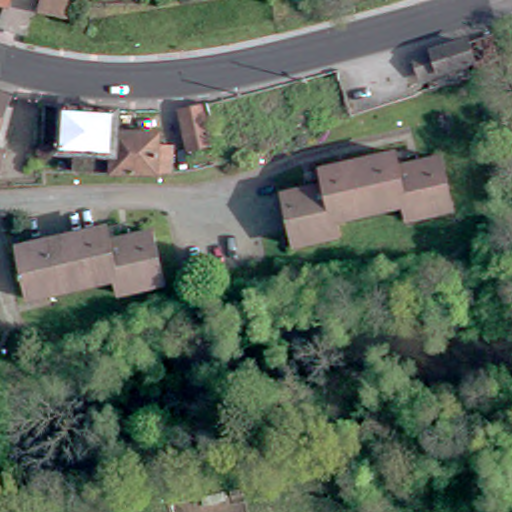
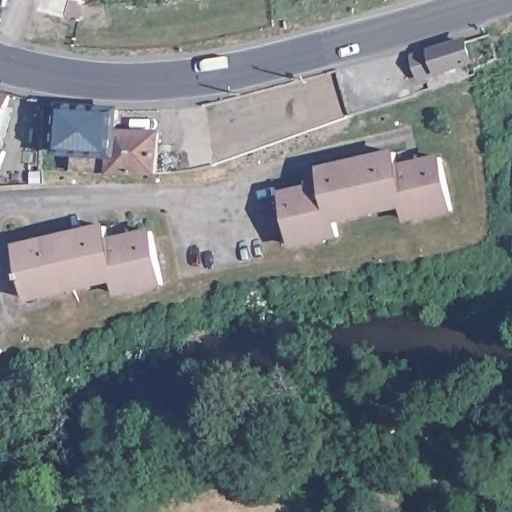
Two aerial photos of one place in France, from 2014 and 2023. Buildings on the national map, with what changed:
unchanged [(1,10),(0,9),(0,0),(5,0),(1,10)]
unchanged [(32,0),(65,0),(80,3),(76,21),(29,11),(32,0)]
unchanged [(489,30),(496,55),(474,65),(427,85),(418,50),(489,30)]
unchanged [(0,123),(0,87),(11,91),(0,123)]
unchanged [(193,143),(183,101),(206,97),(214,138),(193,143)]
unchanged [(73,167),(74,151),(58,149),(61,104),(118,107),(116,128),(113,170),(73,167)]
unchanged [(159,129),(159,142),(171,143),(171,169),(133,170),(113,170),(116,128),(159,129)]
unchanged [(3,147),(0,159),(0,145),(3,147)]
unchanged [(321,166),(395,149),(399,165),(439,156),(451,209),(407,218),(404,203),(336,218),(339,232),(296,241),(283,190),(325,180),(321,166)]
unchanged [(109,236),(151,227),(161,278),(120,287),(118,272),(28,291),(24,272),(19,273),(18,266),(23,265),(18,238),(106,221),(109,236)]
unchanged [(402,429),(396,442),(372,431),(382,407),(406,418),(402,429)]

